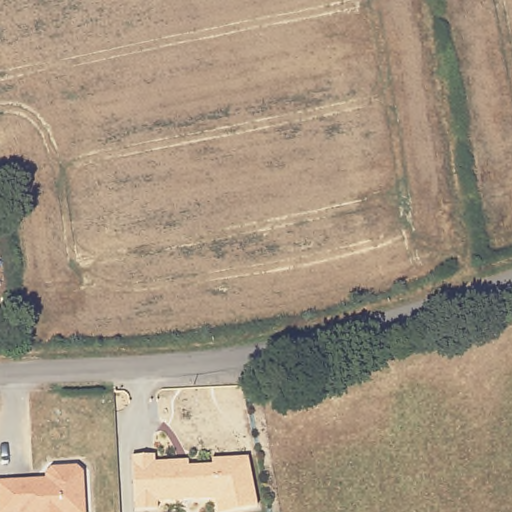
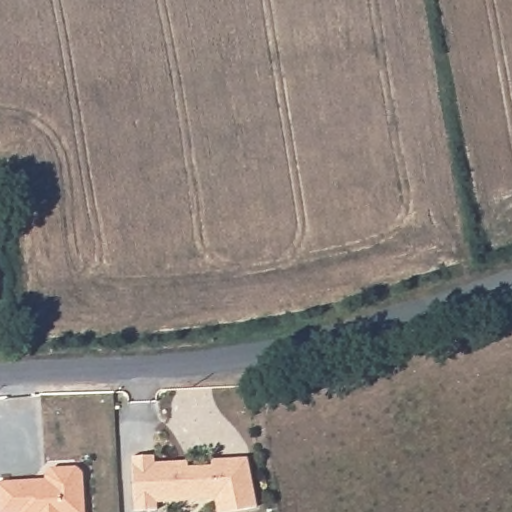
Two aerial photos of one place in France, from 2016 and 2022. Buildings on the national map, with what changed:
unchanged [(214,461),(250,459),(260,508),(238,512),(220,512),(218,500),(159,503),(160,511),(137,512),(134,458),(157,457),(157,464),(179,463),(180,469),(191,468),(215,467),(214,461)]
unchanged [(53,470),(77,469),(84,474),(86,512),(0,512),(0,483),(22,482),(29,482),(40,481),(47,481),(47,476),(53,470)]

